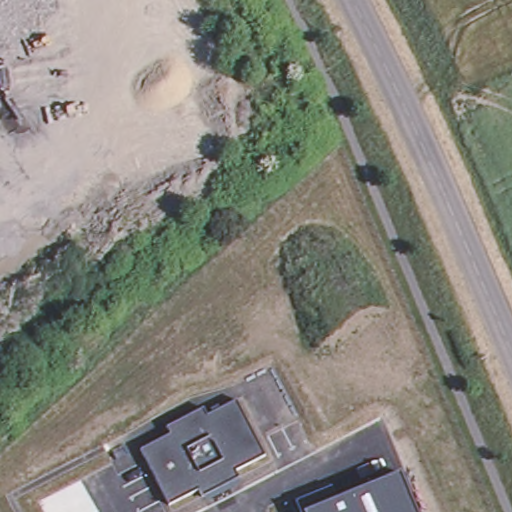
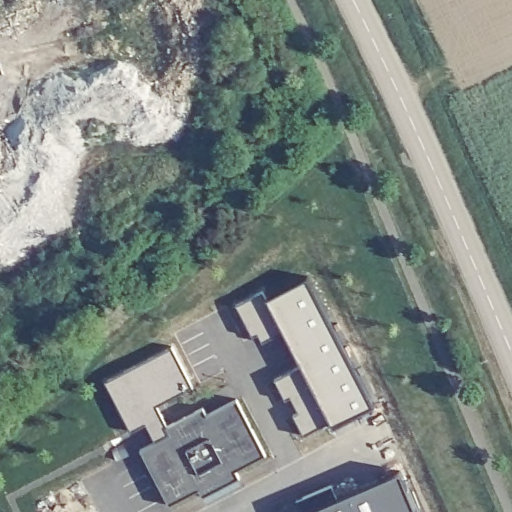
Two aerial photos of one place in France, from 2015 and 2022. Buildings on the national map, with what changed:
new [(295,415),(300,412),(291,395),(283,398),(275,380),(303,365),(284,328),(263,341),(259,332),(252,336),(236,305),(262,291),(266,300),(308,279),(372,406),(333,427),(330,421),(304,435),(295,415)]
new [(147,422),(130,431),(105,381),(172,348),(192,386),(155,404),(166,426),(170,434),(155,442),(147,422)]
unchanged [(140,449),(170,434),(166,426),(202,407),(206,415),(237,400),(265,453),(235,470),(240,478),(202,496),(198,489),(168,504),(140,449)]
unchanged [(332,484),(338,497),(400,471),(416,512),(303,512),(302,511),(296,499),(332,484)]

